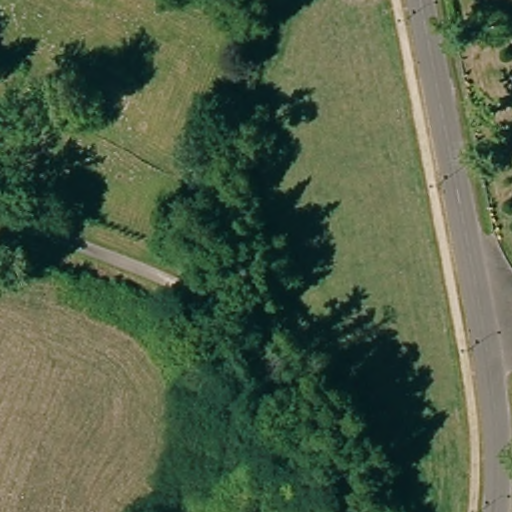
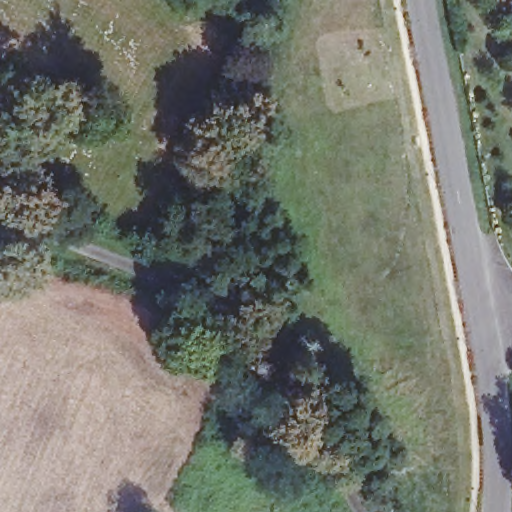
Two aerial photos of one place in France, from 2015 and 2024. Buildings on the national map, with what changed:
[]

